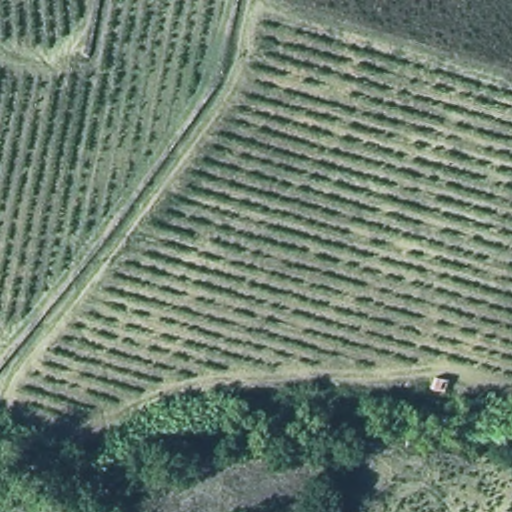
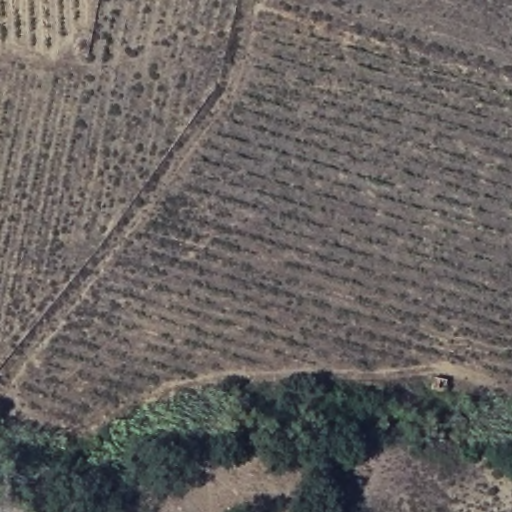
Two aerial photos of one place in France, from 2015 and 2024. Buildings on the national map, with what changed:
unchanged [(445,377),(440,387),(431,385),(433,373),(445,377)]

